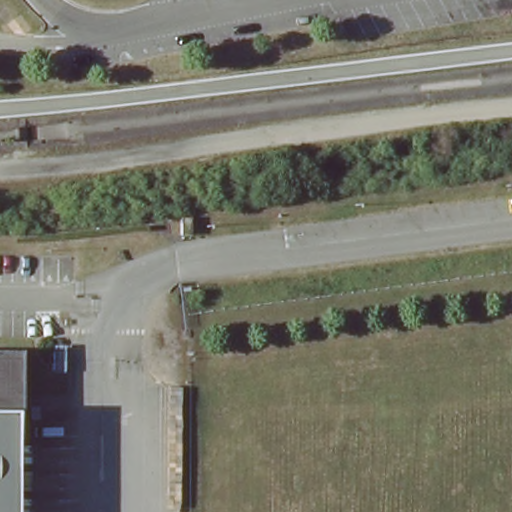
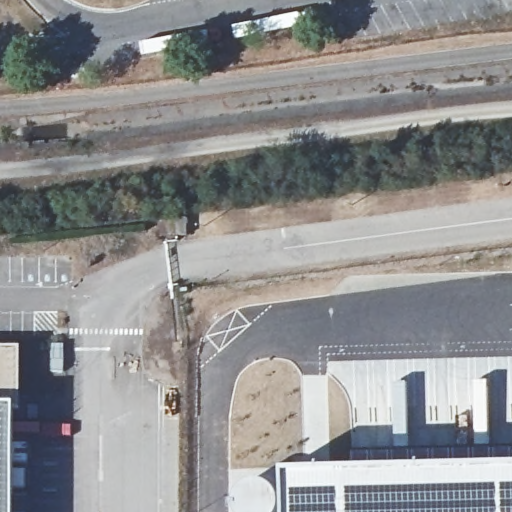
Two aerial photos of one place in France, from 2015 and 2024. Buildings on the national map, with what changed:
unchanged [(20,411),(13,411),(13,512),(0,512),(0,351),(20,351),(20,411)]
new [(288,465),(419,460),(512,458),(512,512),(289,512),(288,465)]
new [(238,492),(243,484),(251,479),(259,477),(269,479),(276,484),(281,492),(283,500),(281,509),(279,512),(240,512),(238,509),(237,500),(238,492)]

